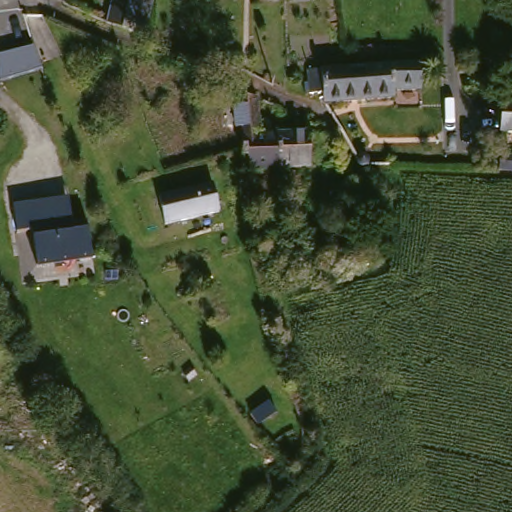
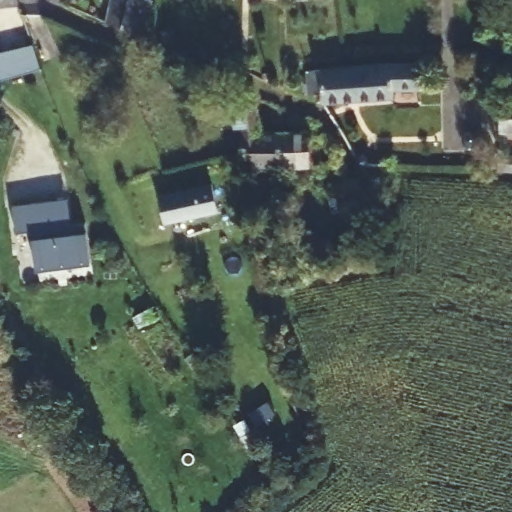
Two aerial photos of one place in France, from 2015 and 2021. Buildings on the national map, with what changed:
unchanged [(159,2),(146,38),(128,31),(108,23),(115,0),(127,0),(136,2),(137,0),(153,0),(159,2)]
unchanged [(2,81),(0,73),(0,54),(34,44),(43,69),(2,81)]
unchanged [(376,62),(433,60),(435,83),(405,84),(406,89),(332,93),(330,84),(316,85),(316,66),(328,64),(376,62)]
unchanged [(512,96),(512,128),(506,126),(511,96),(512,96)]
unchanged [(253,165),(248,147),(246,139),(248,98),(268,99),(269,135),(292,133),(321,132),(316,165),(299,166),(290,166),(253,165)]
unchanged [(220,183),(228,210),(173,222),(169,194),(220,183)]
unchanged [(68,198),(73,224),(84,222),(90,262),(36,269),(31,228),(16,231),(13,205),(68,198)]

